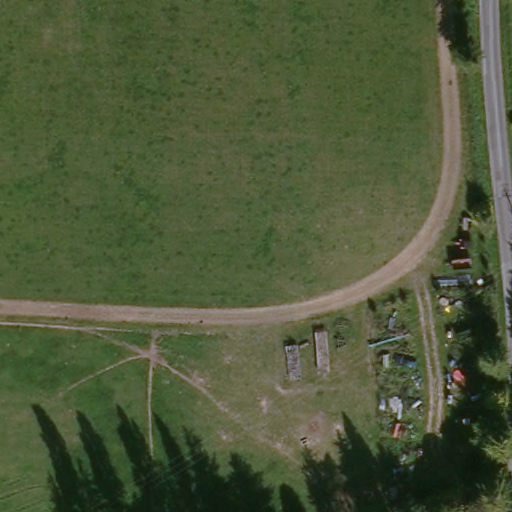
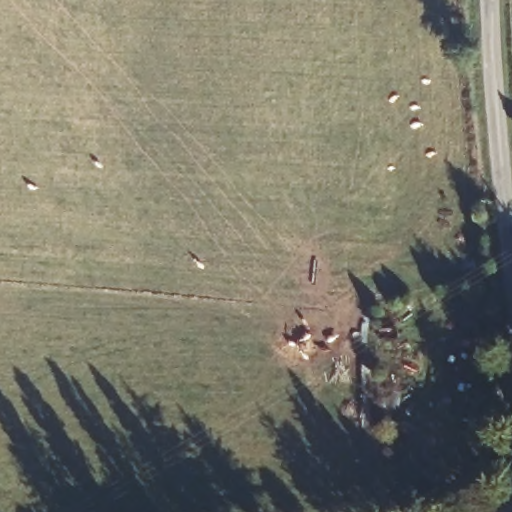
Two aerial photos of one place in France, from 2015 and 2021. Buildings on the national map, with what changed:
[]

